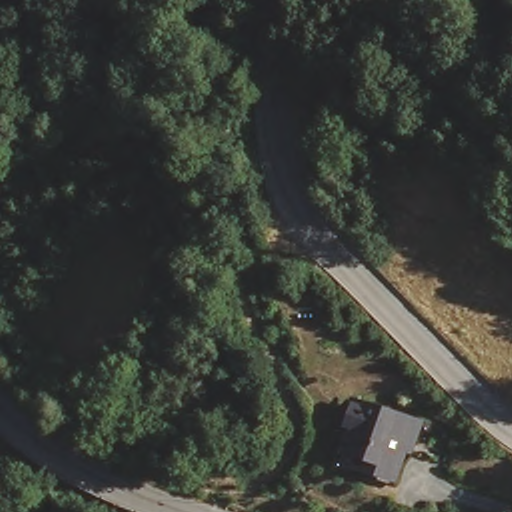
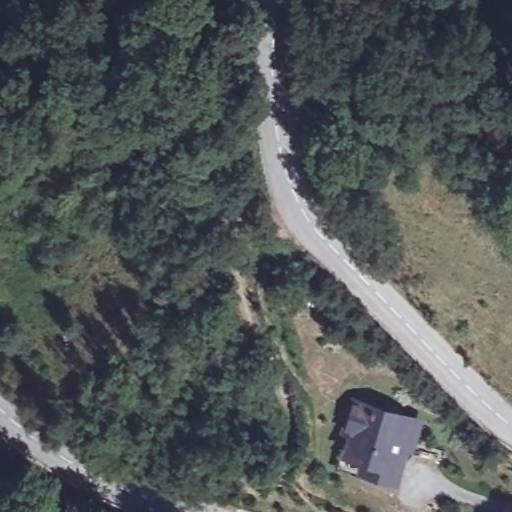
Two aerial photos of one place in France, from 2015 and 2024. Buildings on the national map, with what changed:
unchanged [(382,418),(393,416),(397,424),(414,431),(405,453),(398,455),(387,478),(362,468),(360,458),(347,451),(353,433),(341,427),(355,410),(382,418)]

